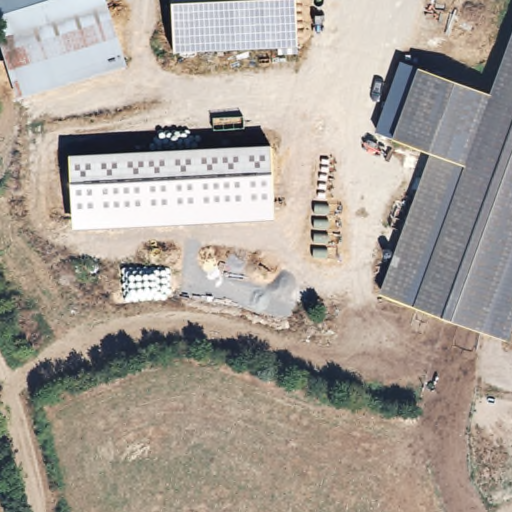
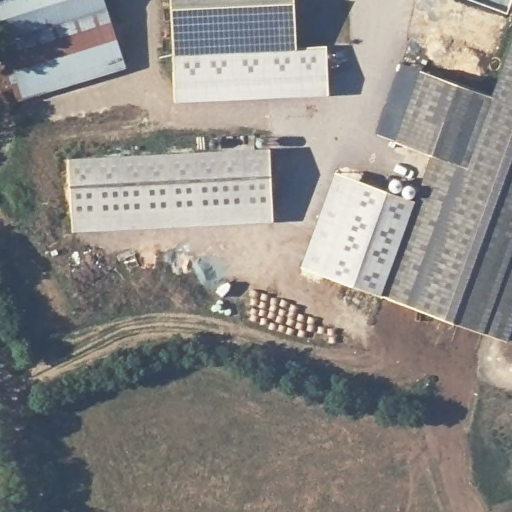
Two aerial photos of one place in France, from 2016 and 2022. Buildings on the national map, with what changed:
unchanged [(103,0),(123,69),(14,103),(0,51),(0,0),(103,0)]
unchanged [(294,0),(295,47),(172,54),(170,0),(294,0)]
new [(325,45),(328,93),(174,100),(172,54),(295,47),(325,45)]
unchanged [(512,335),(509,343),(384,299),(433,157),(395,144),(421,73),(493,99),(512,46),(512,335)]
new [(373,137),(399,65),(421,73),(395,144),(373,137)]
unchanged [(69,156),(269,145),(272,220),(71,231),(69,156)]
new [(335,169),(418,200),(385,296),(301,266),(335,169)]

